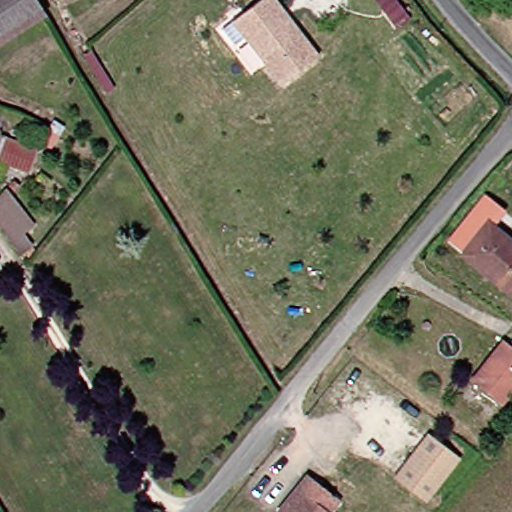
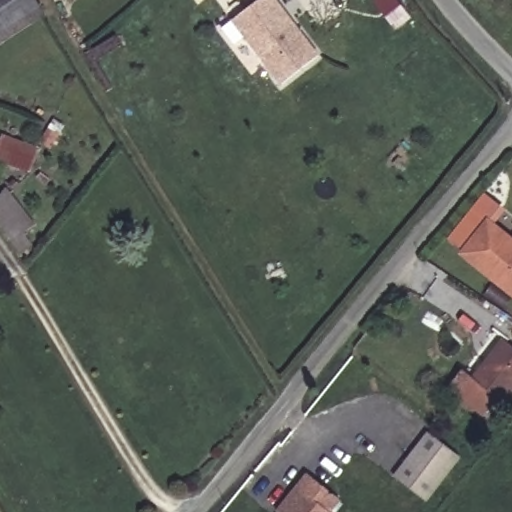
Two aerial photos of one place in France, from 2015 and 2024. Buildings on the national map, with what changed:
unchanged [(43,14),(0,41),(0,0),(35,0),(43,14)]
unchanged [(260,0),(275,0),(317,57),(279,85),(232,20),(260,0)]
unchanged [(412,11),(399,20),(388,5),(396,0),(403,0),(412,11)]
unchanged [(38,149),(32,171),(0,161),(0,144),(2,137),(38,149)]
unchanged [(35,229),(23,239),(32,249),(20,258),(0,233),(0,202),(7,194),(35,229)]
unchanged [(512,241),(512,294),(462,254),(488,221),(512,241)]
unchanged [(512,347),(512,389),(500,403),(471,381),(503,340),(512,347)]
unchanged [(462,454),(429,498),(397,475),(430,430),(462,454)]
unchanged [(329,512),(278,512),(297,488),(307,475),(339,500),(329,512)]

